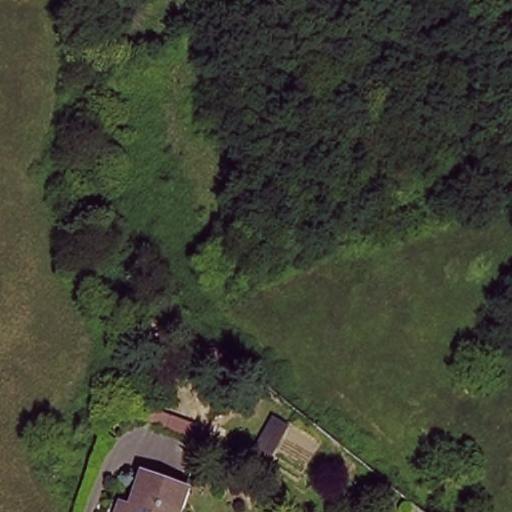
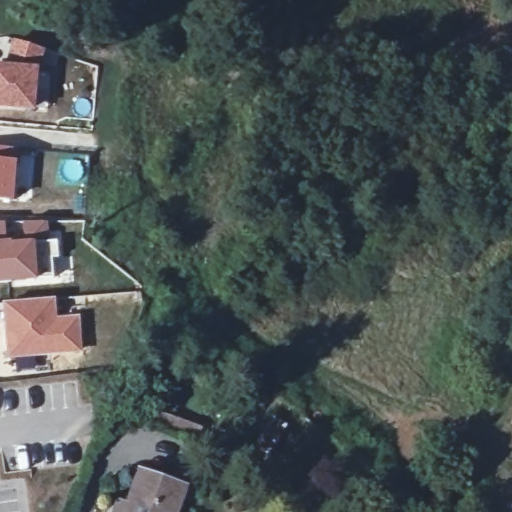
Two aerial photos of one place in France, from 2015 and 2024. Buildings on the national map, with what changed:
new [(6,65),(15,40),(48,52),(39,72),(34,111),(0,109),(0,65),(6,65)]
new [(20,151),(19,162),(16,202),(0,201),(0,149),(20,151)]
new [(6,224),(7,242),(24,242),(24,223),(50,224),(50,243),(36,243),(39,280),(0,283),(0,224),(6,224)]
new [(56,298),(58,316),(81,316),(84,353),(9,357),(4,304),(56,298)]
unchanged [(147,473),(189,490),(181,512),(133,512),(147,473)]
unchanged [(119,511),(122,512),(119,512),(119,511)]

